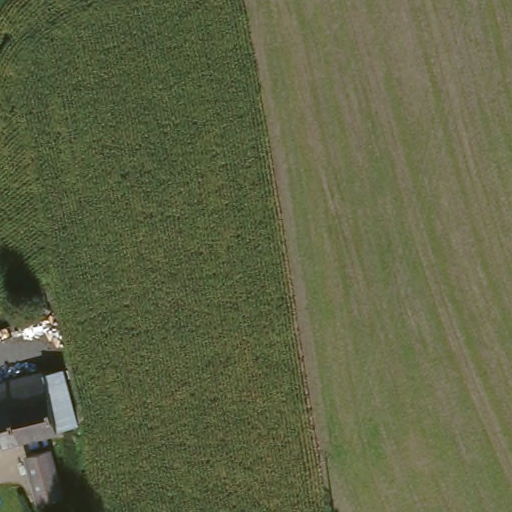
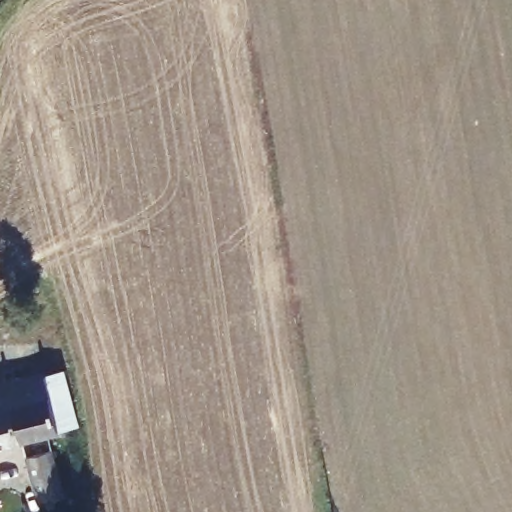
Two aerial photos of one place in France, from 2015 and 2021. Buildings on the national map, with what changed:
unchanged [(48,391),(67,387),(74,421),(55,425),(55,427),(0,438),(0,376),(43,367),(48,391)]
unchanged [(54,440),(67,492),(27,496),(18,446),(54,440)]

